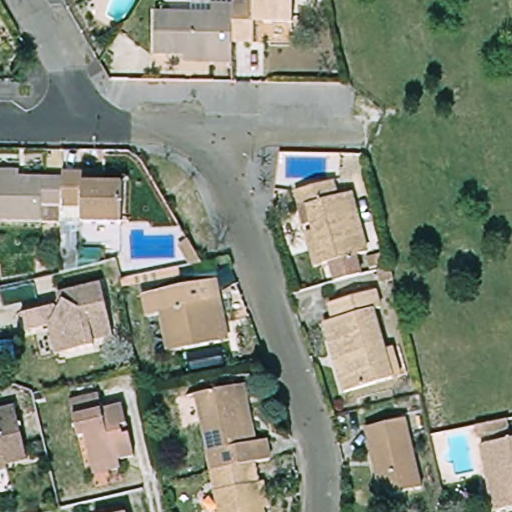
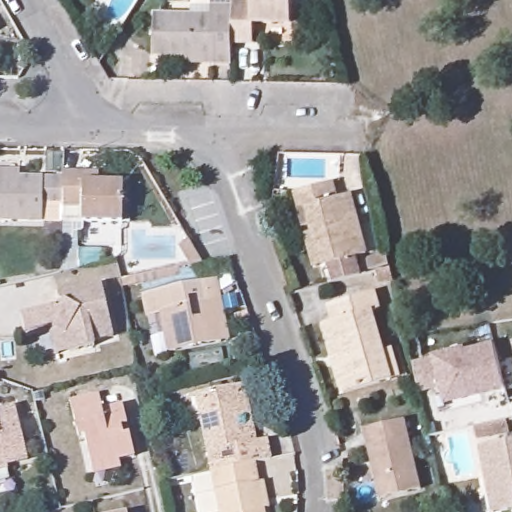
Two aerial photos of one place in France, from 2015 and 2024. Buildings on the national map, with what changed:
unchanged [(254,19),(253,39),(234,38),(234,2),(234,0),(294,0),(294,20),(254,19)]
unchanged [(184,58),(184,51),(154,51),(156,9),(213,11),(213,1),(234,2),(234,38),(233,59),(184,58)]
unchanged [(24,180),(68,180),(68,222),(0,222),(0,171),(24,172),(24,180)]
unchanged [(104,174),(104,185),(129,184),(128,224),(68,222),(68,180),(68,174),(104,174)]
unchanged [(307,229),(315,227),(313,220),(304,222),(296,187),(335,177),(340,193),(353,190),(369,248),(358,251),(363,271),(336,278),(331,258),(324,260),(315,262),(307,229)]
unchanged [(199,257),(193,261),(189,258),(187,260),(178,246),(188,240),(199,257)]
unchanged [(223,345),(171,355),(163,319),(150,321),(146,298),(219,284),(223,307),(231,343),(223,345)]
unchanged [(53,331),(52,328),(26,335),(23,317),(56,309),(62,303),(60,297),(104,287),(115,339),(97,343),(95,350),(71,355),(59,357),(53,331)]
unchanged [(393,381),(384,384),(336,398),(316,329),(326,326),(321,310),(368,296),(373,312),(366,315),(376,356),(384,353),(393,381)]
new [(506,390),(445,405),(441,387),(419,393),(413,362),(433,356),(433,355),(466,347),(467,349),(494,342),(506,390)]
unchanged [(256,460),(214,468),(197,391),(244,381),(258,438),(268,437),(271,457),(256,460)]
unchanged [(95,471),(93,462),(85,433),(80,434),(71,398),(99,392),(104,408),(123,402),(136,452),(119,456),(122,464),(95,471)]
unchanged [(0,408),(14,405),(28,456),(6,462),(8,467),(0,468),(0,408)]
unchanged [(423,487),(383,497),(368,428),(407,420),(423,487)]
unchanged [(487,476),(481,447),(512,440),(512,508),(501,511),(494,512),(487,476)]
unchanged [(256,460),(259,478),(266,477),(271,503),(265,504),(267,512),(221,512),(211,468),(214,468),(256,460)]

